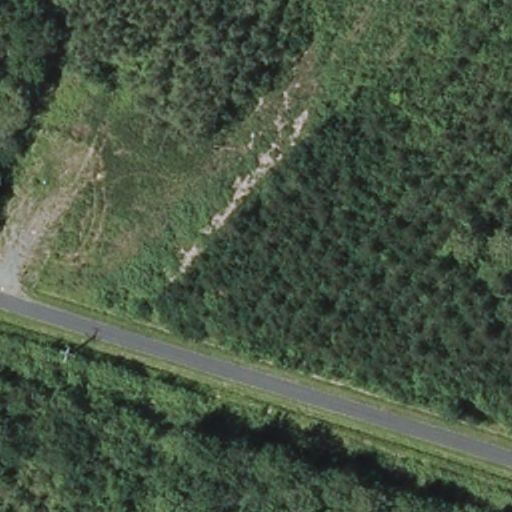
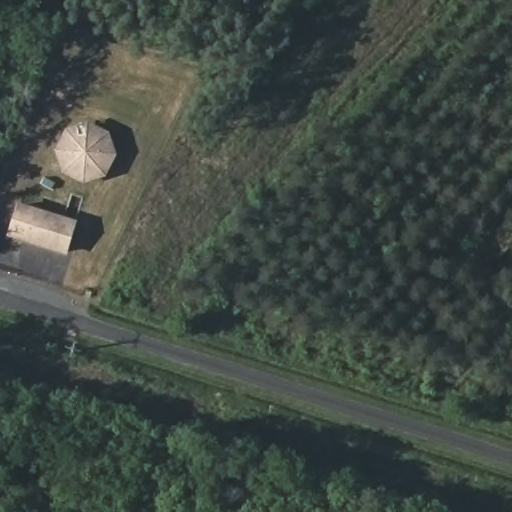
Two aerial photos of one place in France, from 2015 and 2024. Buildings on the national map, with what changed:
new [(55,151),(66,130),(89,122),(109,132),(118,154),(106,176),(85,183),(63,173),(55,151)]
new [(77,221),(68,255),(8,237),(19,202),(77,221)]
demolished [(202,423),(204,418),(210,394),(236,402),(229,430),(202,423)]

